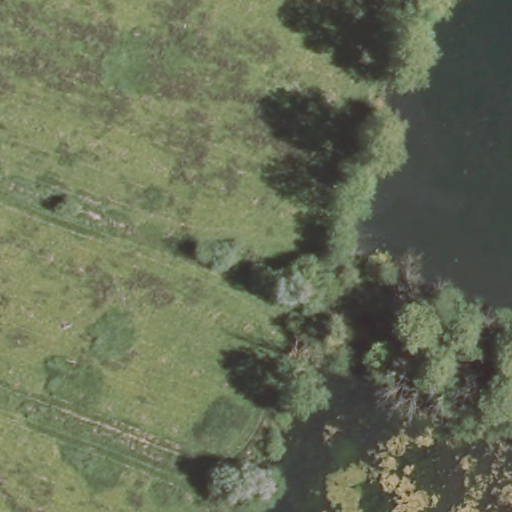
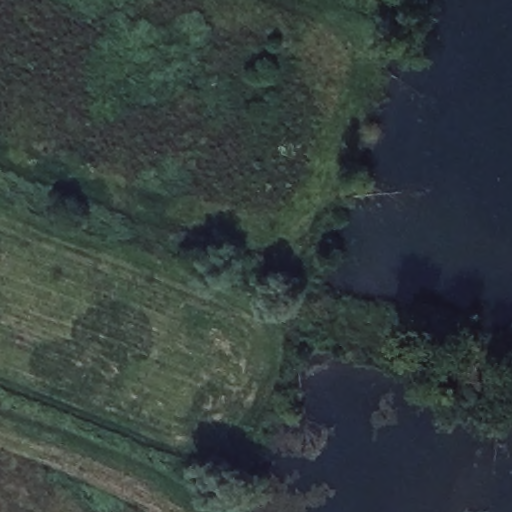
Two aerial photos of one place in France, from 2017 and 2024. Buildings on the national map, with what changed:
unchanged [(490,380),(471,373),(475,365),(493,372),(490,380)]

